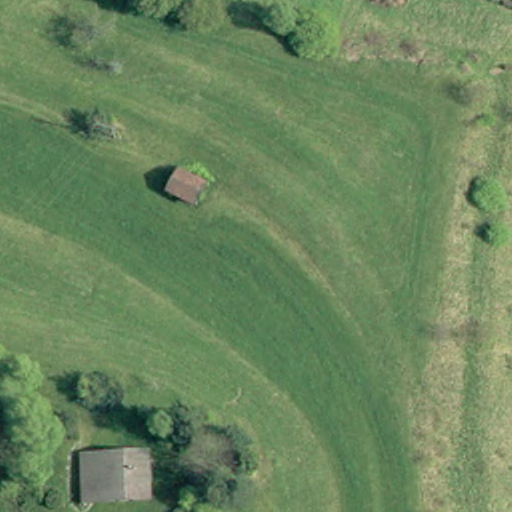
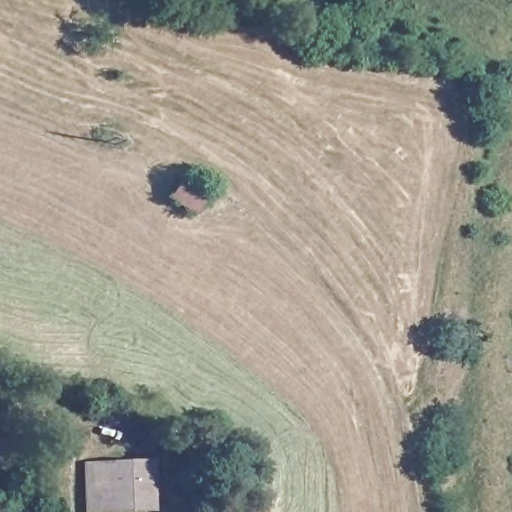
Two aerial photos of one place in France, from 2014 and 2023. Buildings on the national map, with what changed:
unchanged [(195,208),(168,193),(180,175),(207,189),(195,208)]
unchanged [(82,486),(82,458),(147,458),(147,495),(147,505),(82,504),(82,486)]

